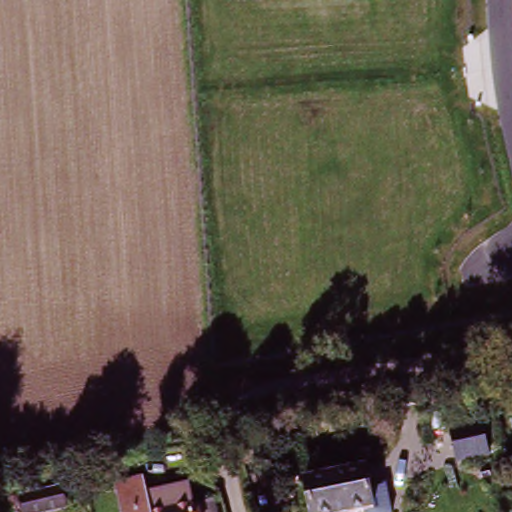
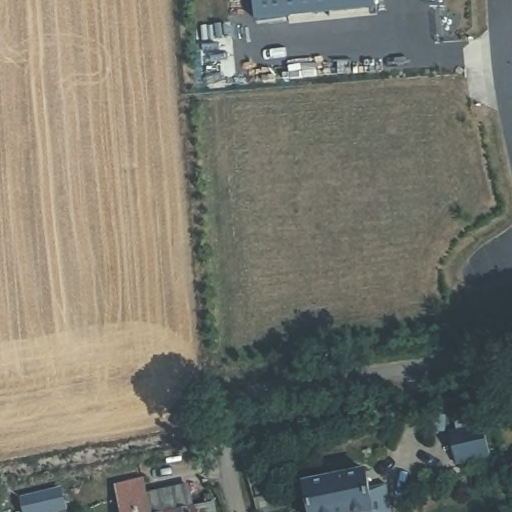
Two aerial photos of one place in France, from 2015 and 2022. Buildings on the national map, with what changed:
new [(254,21),(251,0),(373,0),(374,8),(254,21)]
unchanged [(455,463),(450,431),(483,425),(490,456),(455,463)]
unchanged [(375,506),(341,512),(315,512),(310,481),(368,468),(375,506)]
unchanged [(202,512),(114,512),(109,487),(137,481),(141,499),(181,491),(186,510),(200,507),(202,512)]

